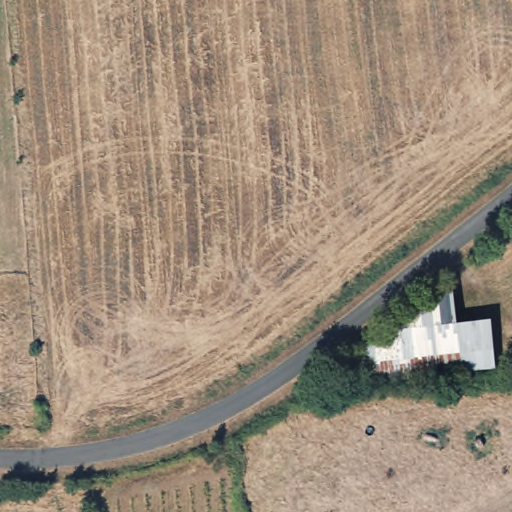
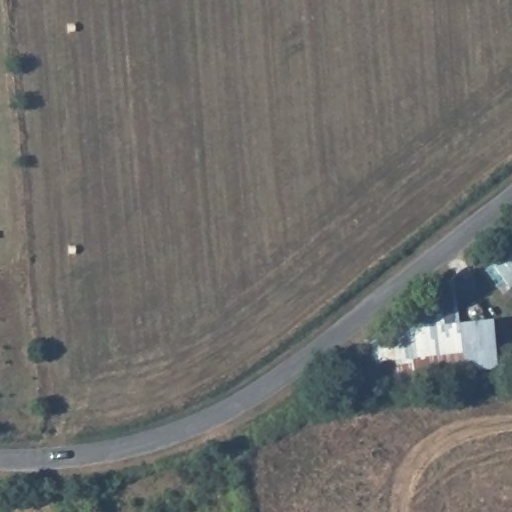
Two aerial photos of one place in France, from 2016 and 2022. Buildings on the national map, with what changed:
unchanged [(492,366),(458,362),(412,366),(376,368),(373,337),(408,332),(406,325),(416,322),(414,311),(449,286),(456,321),(491,316),(492,366)]

